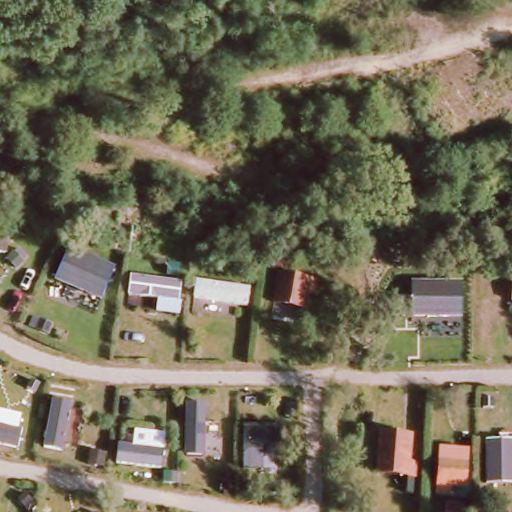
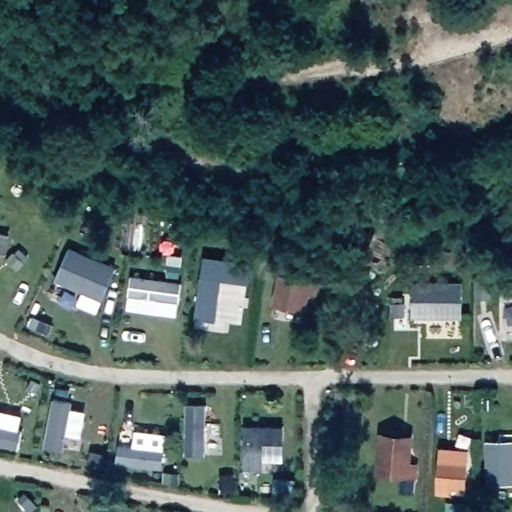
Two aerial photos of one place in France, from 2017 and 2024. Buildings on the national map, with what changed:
unchanged [(117,265),(105,295),(57,272),(69,246),(117,265)]
unchanged [(275,273),(305,281),(297,322),(265,320),(275,273)]
unchanged [(244,431),(279,430),(283,448),(262,448),(265,473),(242,469),(244,431)]
unchanged [(377,432),(407,434),(404,475),(403,491),(395,493),(395,481),(370,478),(377,432)]
unchanged [(119,446),(135,449),(134,435),(161,437),(159,453),(167,457),(163,478),(115,467),(119,446)]
unchanged [(435,452),(464,451),(465,493),(435,492),(435,452)]

